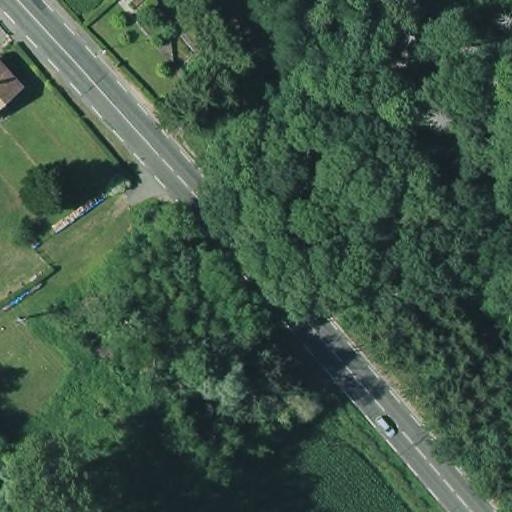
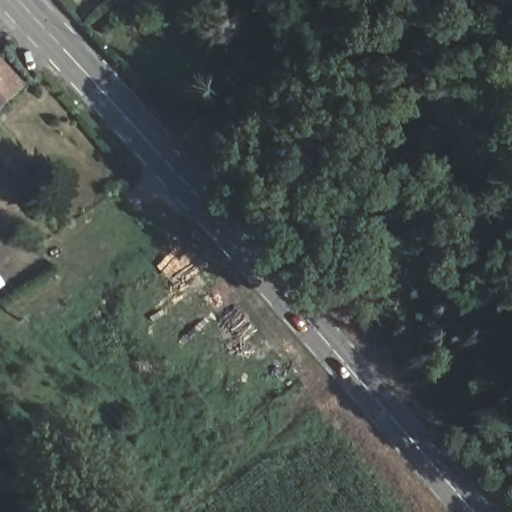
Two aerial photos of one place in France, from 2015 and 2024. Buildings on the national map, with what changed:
unchanged [(18,89),(0,106),(0,70),(18,89)]

